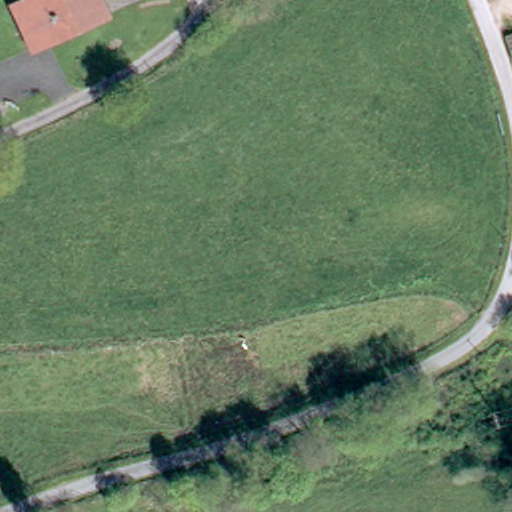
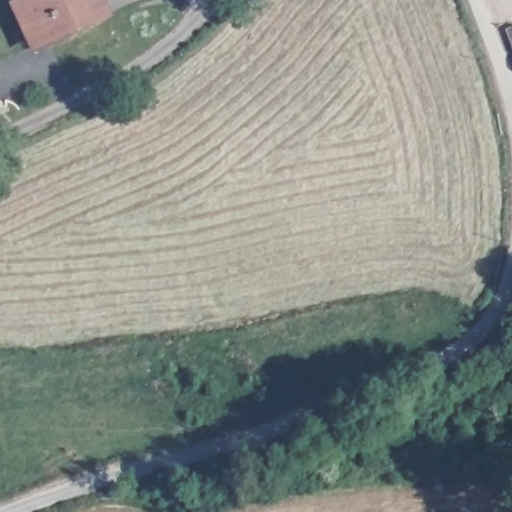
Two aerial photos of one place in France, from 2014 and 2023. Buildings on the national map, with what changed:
unchanged [(34,0),(101,0),(109,16),(37,49),(17,7),(34,0)]

